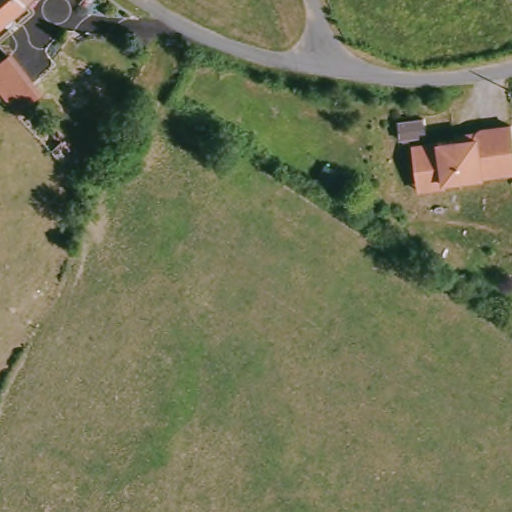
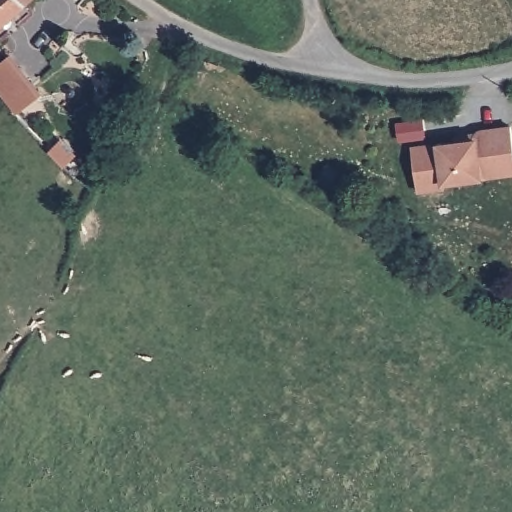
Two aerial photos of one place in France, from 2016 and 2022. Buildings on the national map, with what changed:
unchanged [(24,4),(0,23),(0,0),(20,0),(24,4)]
unchanged [(34,79),(14,98),(1,84),(21,66),(34,79)]
unchanged [(455,146),(455,145),(455,144),(456,143),(456,142),(457,141),(457,140),(458,139),(460,138),(462,138),(480,134),(504,129),(512,172),(512,175),(477,182),(434,190),(428,187),(407,191),(400,158),(455,147),(455,146)]
unchanged [(327,168),(340,175),(333,188),(320,181),(327,168)]

